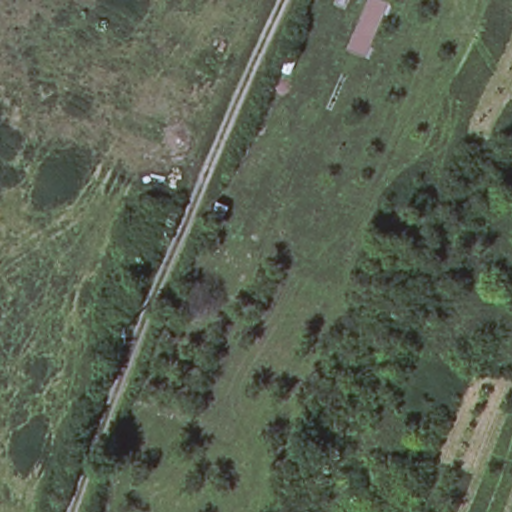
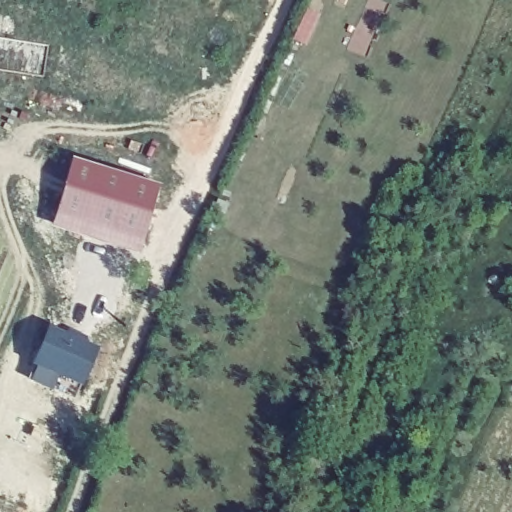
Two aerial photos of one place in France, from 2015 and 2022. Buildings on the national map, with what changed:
new [(158,185),(142,252),(53,225),(73,159),(158,185)]
new [(100,348),(86,386),(60,375),(55,390),(33,380),(40,366),(36,365),(51,326),(100,348)]

